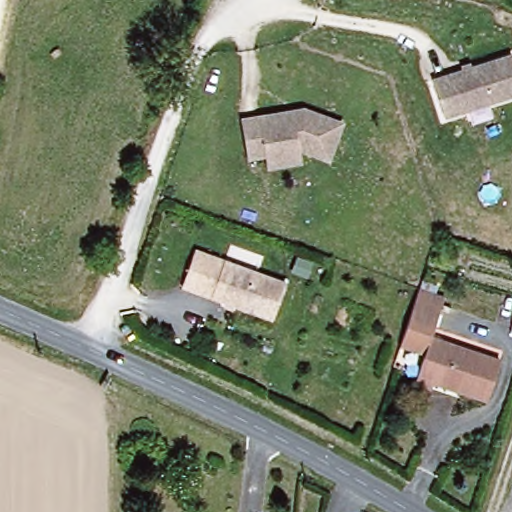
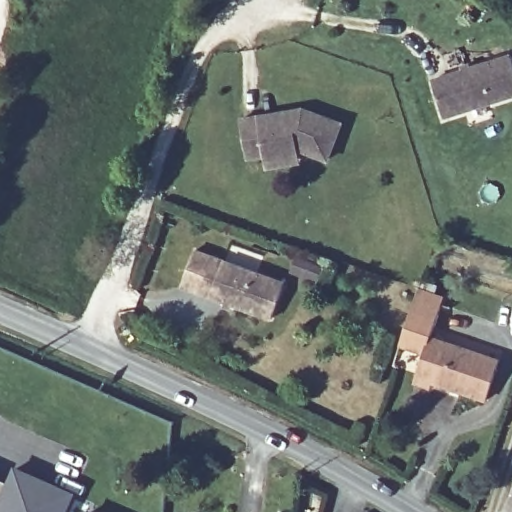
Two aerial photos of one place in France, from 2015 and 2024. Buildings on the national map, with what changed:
unchanged [(512,57),(512,95),(444,117),(434,78),(512,55),(512,57)]
unchanged [(261,165),(258,152),(242,154),(235,116),(299,106),(335,121),(323,156),(295,147),(296,159),(261,165)]
unchanged [(282,285),(268,322),(179,288),(193,252),(282,285)]
unchanged [(487,397),(433,381),(431,389),(414,383),(423,356),(398,347),(403,331),(413,305),(436,312),(429,336),(500,359),(487,397)]
new [(5,487),(12,472),(69,497),(62,512),(0,512),(0,484),(5,487)]

